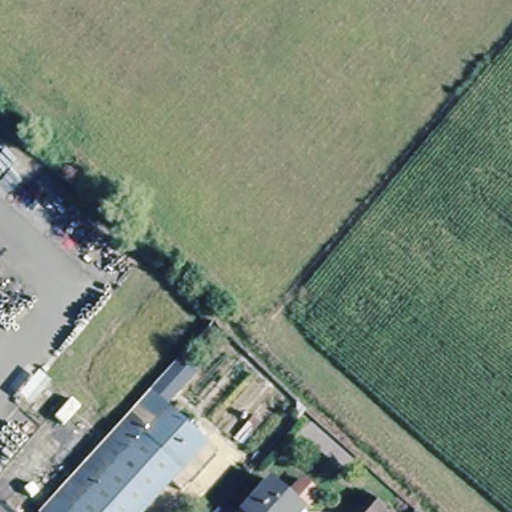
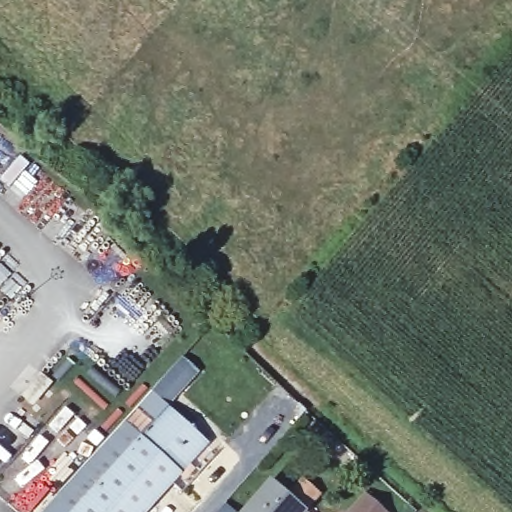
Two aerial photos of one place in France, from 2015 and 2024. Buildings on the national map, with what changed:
unchanged [(172,476),(140,512),(48,512),(42,506),(183,351),(199,365),(166,401),(217,447),(182,486),(172,476)]
unchanged [(290,496),(304,480),(320,493),(303,512),(245,512),(272,481),(290,496)]
unchanged [(346,512),(343,510),(366,485),(396,512),(346,512)]
unchanged [(237,512),(217,512),(226,502),(237,512)]

